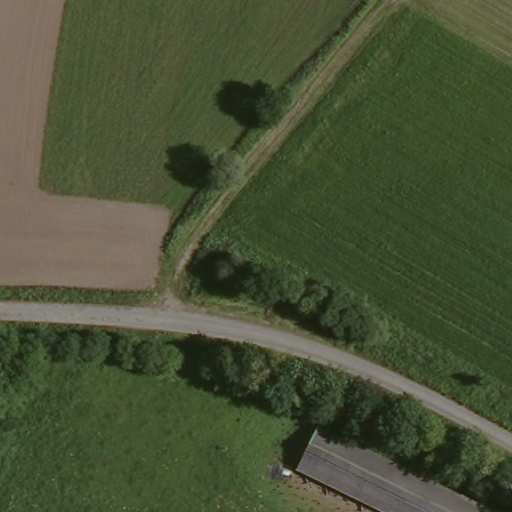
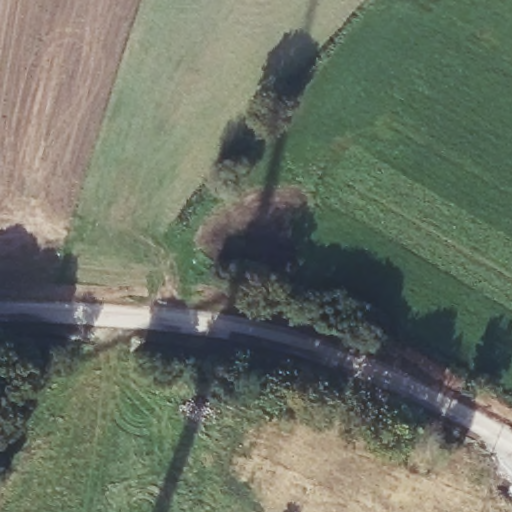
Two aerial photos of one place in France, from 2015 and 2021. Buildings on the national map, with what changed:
demolished [(310,431),(469,512),(369,512),(352,503),(289,471),(310,431)]

